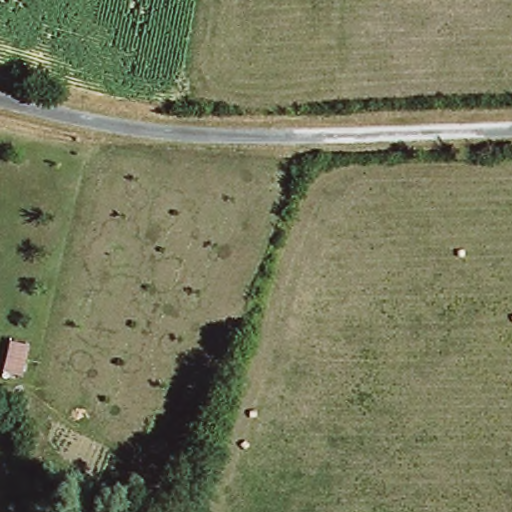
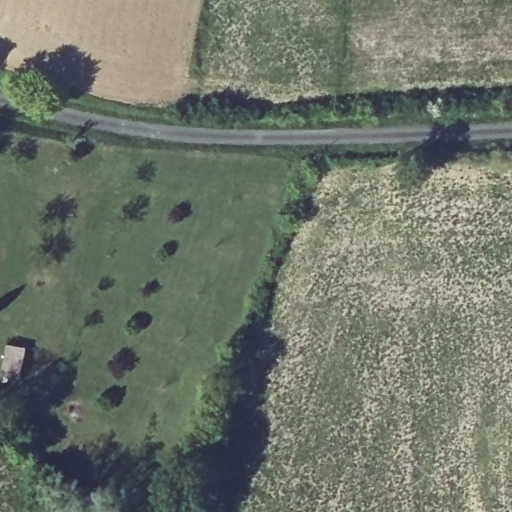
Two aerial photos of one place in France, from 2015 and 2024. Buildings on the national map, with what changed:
unchanged [(3,374),(9,342),(31,347),(25,378),(3,374)]

